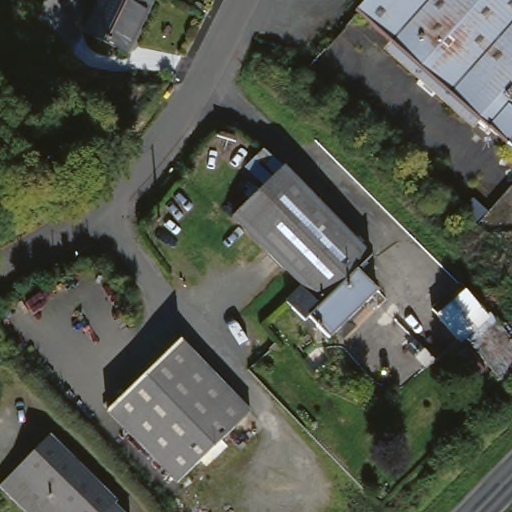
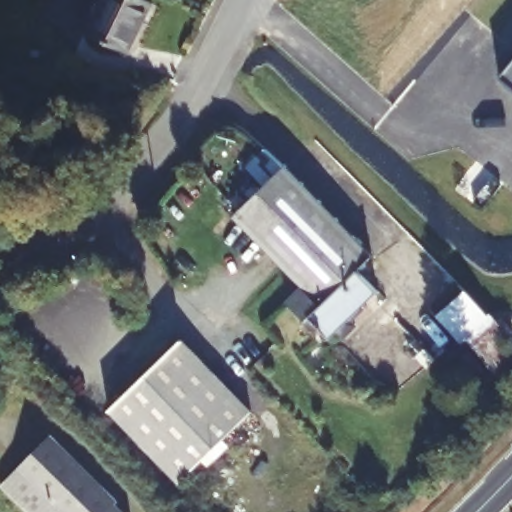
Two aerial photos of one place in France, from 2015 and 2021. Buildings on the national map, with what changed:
unchanged [(99,0),(138,0),(150,6),(137,31),(132,28),(120,54),(81,35),(99,0)]
demolished [(471,132),(379,51),(387,43),(353,12),(364,0),(512,0),(512,153),(479,125),(471,132)]
new [(512,85),(495,70),(512,51),(512,85)]
unchanged [(368,254),(352,271),(375,292),(328,341),(306,320),(317,306),(230,222),(277,171),(368,254)]
unchanged [(453,285),(484,314),(457,342),(427,314),(453,285)]
unchanged [(175,345),(179,342),(180,344),(250,423),(176,493),(103,412),(175,345)]
unchanged [(114,508),(118,512),(23,512),(0,488),(0,486),(51,435),(117,504),(114,508)]

